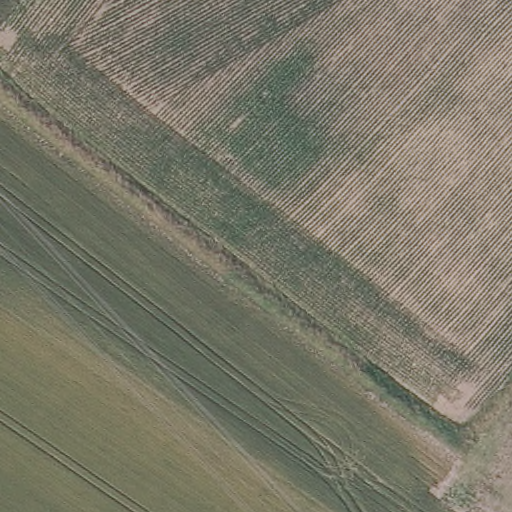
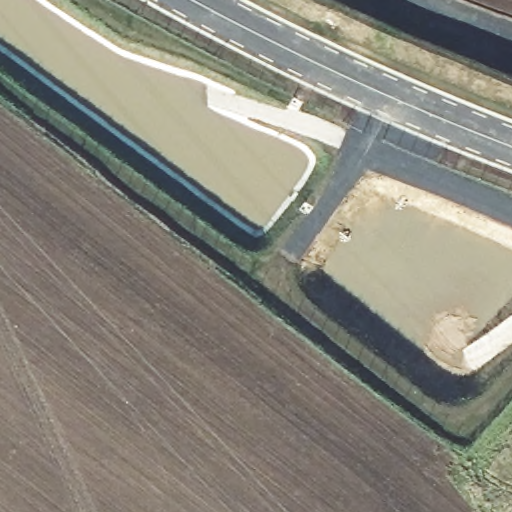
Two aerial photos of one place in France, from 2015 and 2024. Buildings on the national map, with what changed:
[]

